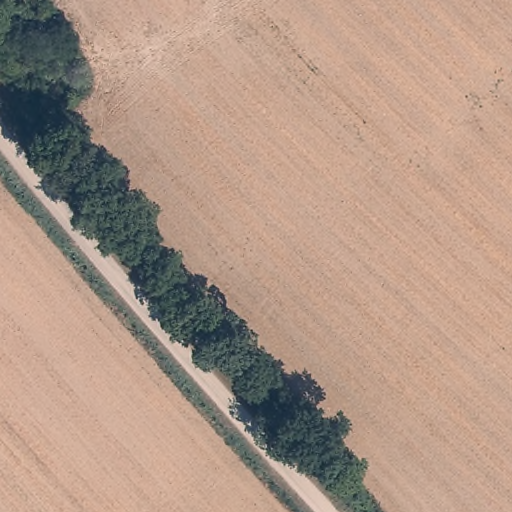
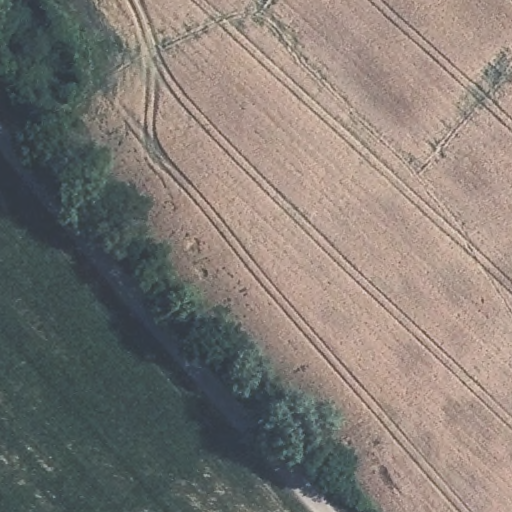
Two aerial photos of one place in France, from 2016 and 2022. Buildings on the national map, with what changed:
[]

